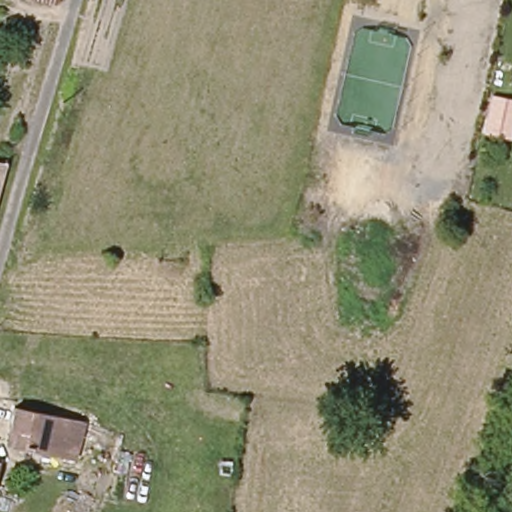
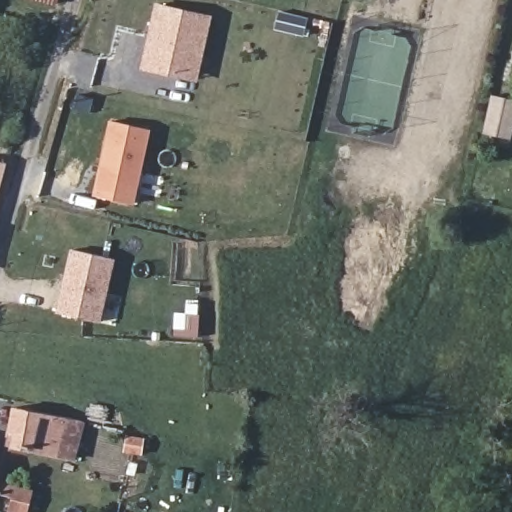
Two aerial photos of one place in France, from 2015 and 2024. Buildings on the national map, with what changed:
new [(180,75),(142,66),(149,32),(152,22),(156,4),(208,16),(203,39),(194,78),(180,75)]
new [(483,133),(491,94),(512,99),(512,131),(510,139),(483,133)]
new [(131,202),(93,194),(110,120),(148,129),(131,202)]
unchanged [(11,164),(0,199),(0,161),(11,164)]
new [(111,258),(97,321),(56,312),(71,248),(111,258)]
unchanged [(19,409),(22,410),(21,416),(64,423),(65,415),(84,417),(75,465),(7,452),(16,409),(19,409)]

